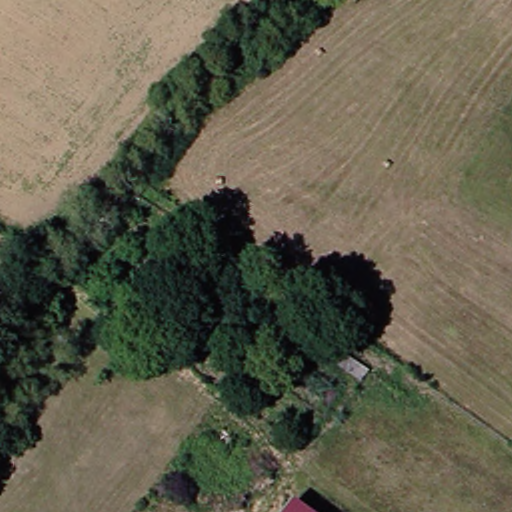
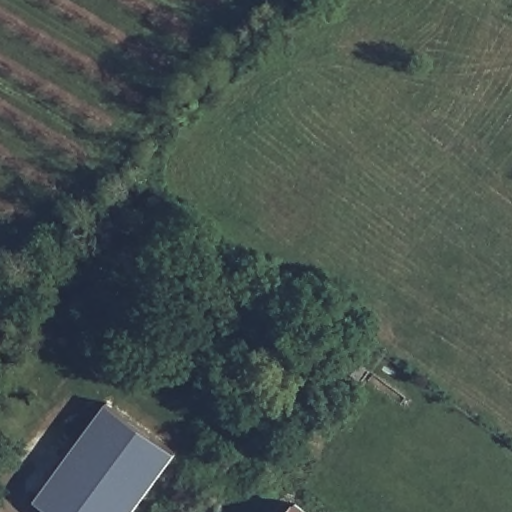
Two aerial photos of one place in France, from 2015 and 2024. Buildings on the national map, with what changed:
new [(37,501),(108,403),(176,453),(133,512),(52,512),(37,501)]
unchanged [(310,512),(289,512),(297,502),(310,512)]

